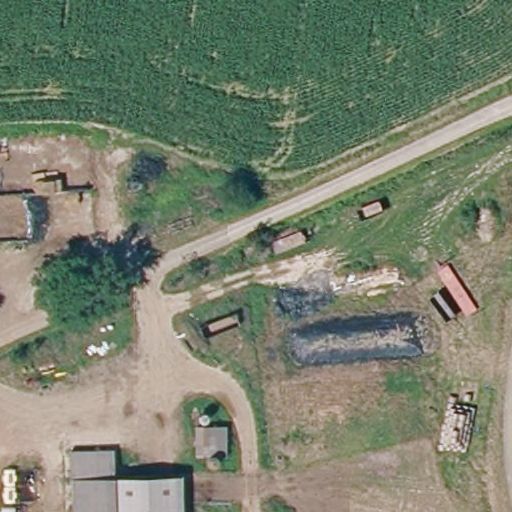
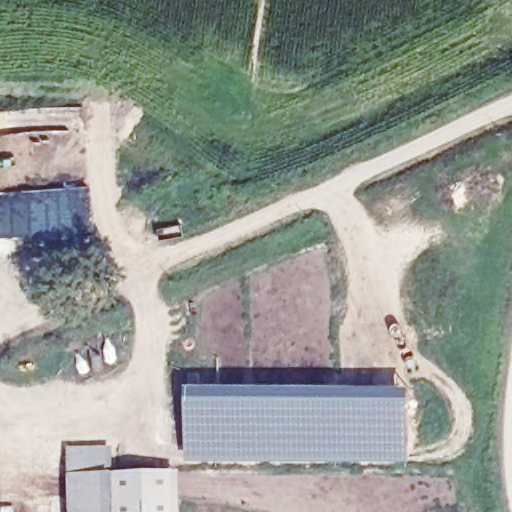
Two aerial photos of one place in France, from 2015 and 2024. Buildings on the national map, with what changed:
new [(408,459),(186,459),(185,385),(410,385),(408,459)]
demolished [(190,416),(220,416),(220,447),(190,447),(190,416)]
unchanged [(110,451),(110,477),(110,478),(109,478),(109,512),(71,512),(70,480),(70,451),(110,451)]
unchanged [(109,478),(110,478),(110,477),(177,475),(178,512),(109,512),(109,478)]

